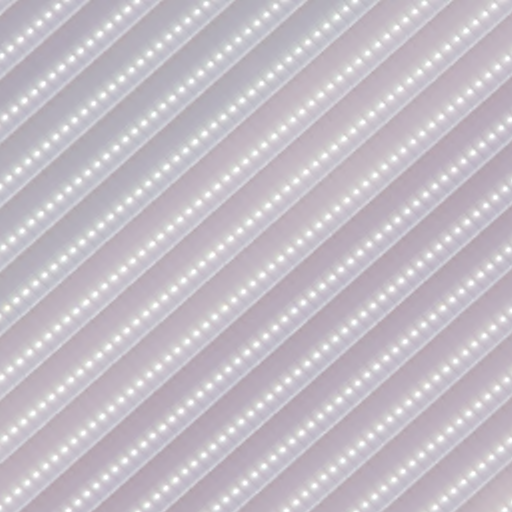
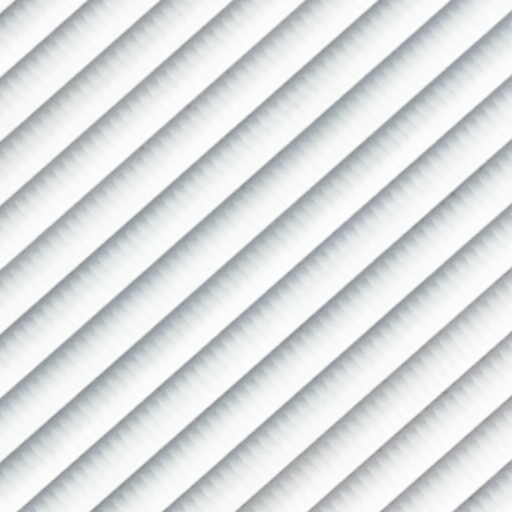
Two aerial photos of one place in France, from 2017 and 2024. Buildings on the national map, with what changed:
unchanged [(0,0),(512,0),(512,512),(0,512),(0,0)]

